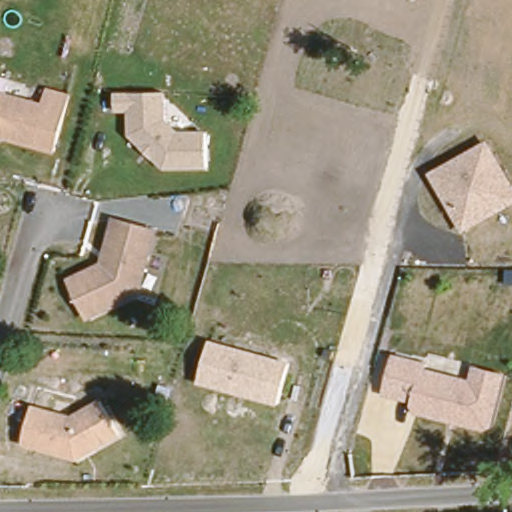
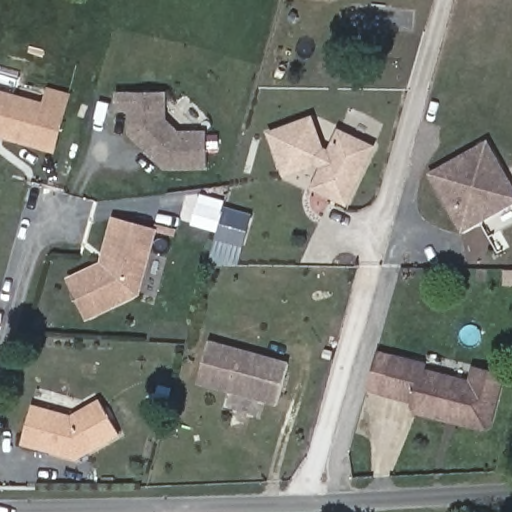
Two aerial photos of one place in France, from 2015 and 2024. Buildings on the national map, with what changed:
unchanged [(45,102),(41,101),(46,86),(73,94),(55,154),(33,147),(45,102)]
unchanged [(0,89),(41,101),(45,102),(33,147),(0,138),(0,89)]
unchanged [(164,170),(126,137),(128,112),(115,112),(116,95),(167,93),(167,122),(178,132),(206,131),(205,170),(164,170)]
new [(347,207),(309,189),(319,169),(314,166),(283,177),(266,132),(312,116),(323,147),(328,149),(338,129),(375,146),(347,207)]
unchanged [(512,184),(512,204),(460,233),(427,173),(487,140),(512,184)]
new [(199,194),(223,200),(221,207),(251,215),(238,267),(209,260),(216,232),(191,226),(193,215),(199,194)]
unchanged [(97,264),(110,216),(157,227),(137,295),(82,321),(66,280),(97,264)]
unchanged [(278,406),(197,384),(209,342),(288,363),(278,406)]
unchanged [(473,365),(505,375),(491,427),(481,432),(411,413),(413,404),(380,396),(392,353),(426,362),(425,368),(467,379),(473,365)]
unchanged [(30,404),(70,414),(96,398),(118,436),(74,460),(20,445),(30,404)]

